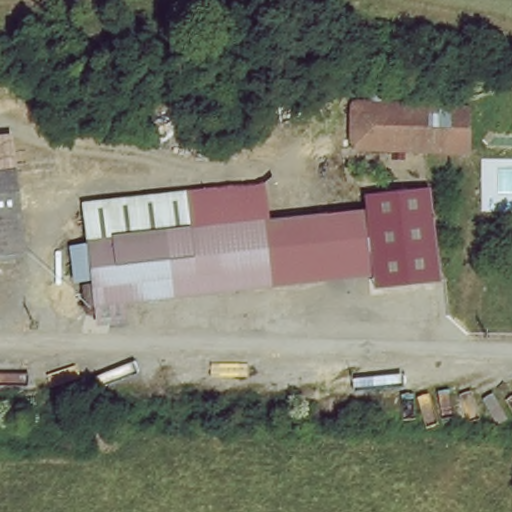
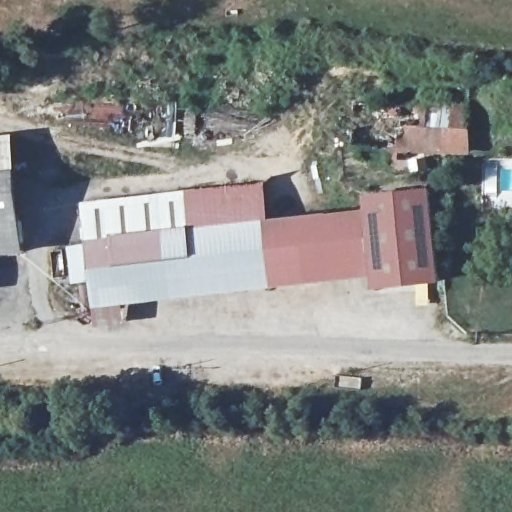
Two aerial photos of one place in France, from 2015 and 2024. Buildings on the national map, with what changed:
unchanged [(465,105),(464,151),(350,146),(351,102),(465,105)]
unchanged [(0,137),(6,136),(11,167),(0,169),(0,137)]
unchanged [(0,252),(0,170),(18,169),(26,249),(0,252)]
unchanged [(262,239),(361,229),(365,273),(279,281),(95,301),(85,220),(259,203),(262,239)]
unchanged [(368,214),(433,211),(438,302),(373,305),(368,214)]

